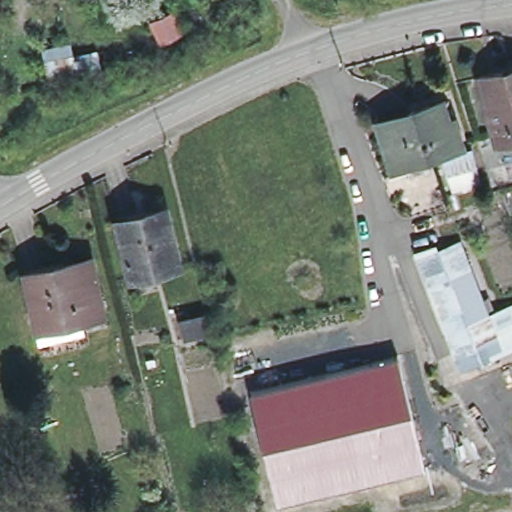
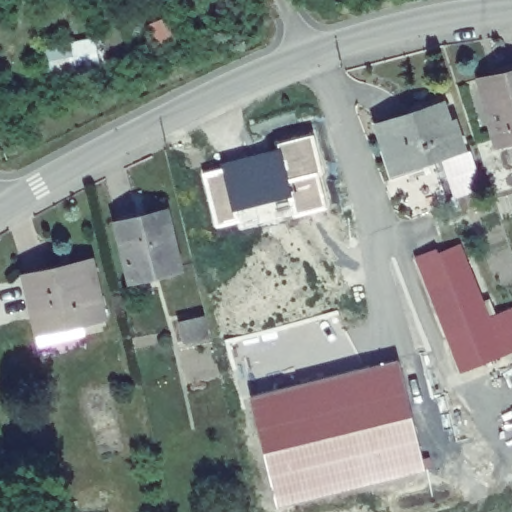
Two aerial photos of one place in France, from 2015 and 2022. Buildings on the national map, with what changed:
unchanged [(480,79),(503,73),(504,76),(512,73),(512,140),(497,144),(480,79)]
unchanged [(445,123),(450,121),(458,145),(429,154),(430,159),(390,173),(373,125),(438,103),(445,123)]
new [(225,171),(223,166),(282,153),(278,146),(312,138),(322,176),(317,176),(325,211),(293,218),(291,197),(233,213),(237,224),(215,229),(203,176),(225,171)]
unchanged [(180,268),(132,279),(118,223),(166,212),(180,268)]
unchanged [(512,309),(512,350),(511,351),(503,354),(462,370),(426,281),(420,263),(417,258),(435,251),(437,257),(460,247),(467,265),(483,303),(490,301),(495,315),(497,314),(511,308),(512,309)]
unchanged [(105,316),(38,331),(26,277),(93,262),(105,316)]
new [(205,317),(209,337),(182,343),(178,323),(205,317)]
unchanged [(278,506),(251,395),(398,359),(425,470),(278,506)]

